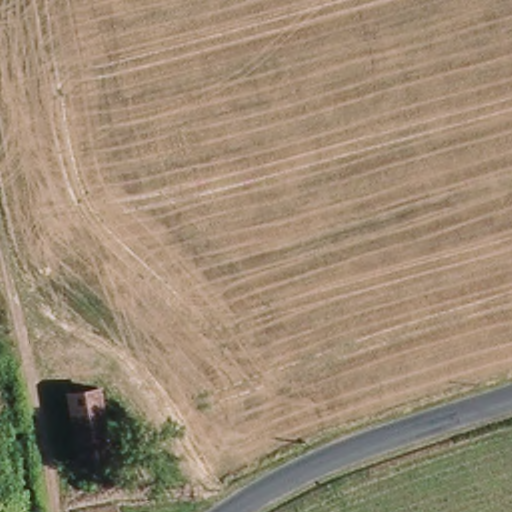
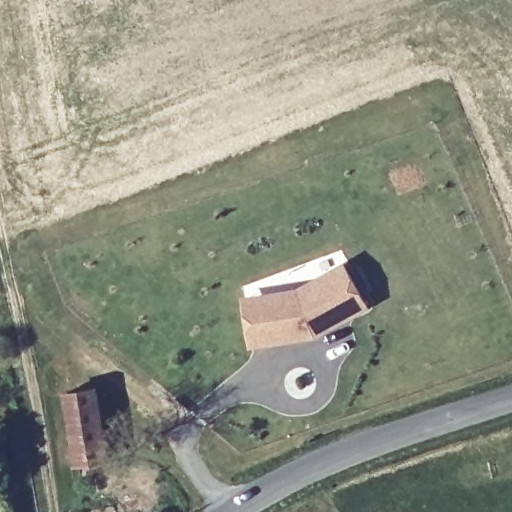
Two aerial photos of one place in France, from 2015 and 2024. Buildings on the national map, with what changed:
new [(306,337),(268,343),(255,345),(247,300),(261,297),(285,293),(300,291),(314,283),(345,266),(367,307),(324,331),(316,336),(306,337)]
unchanged [(76,466),(66,395),(96,390),(107,461),(76,466)]

